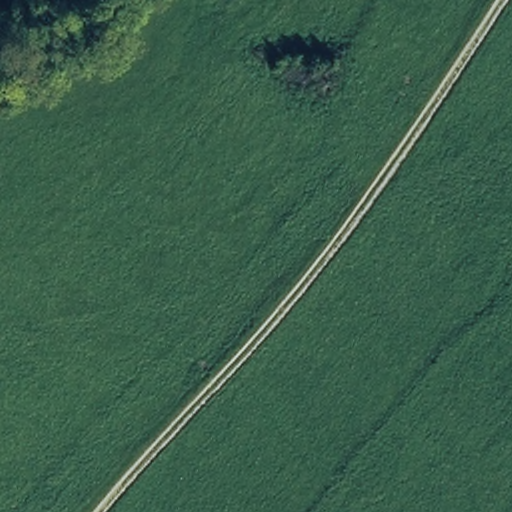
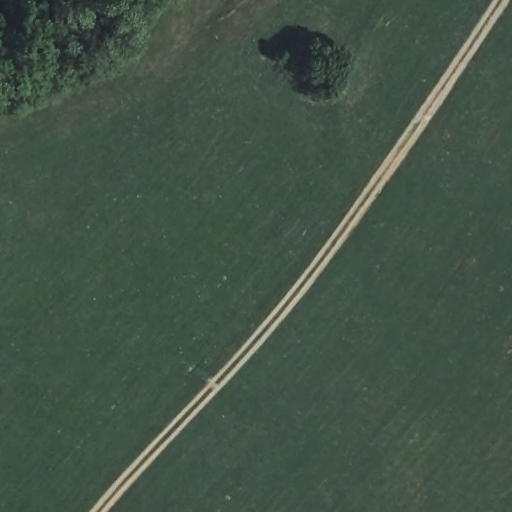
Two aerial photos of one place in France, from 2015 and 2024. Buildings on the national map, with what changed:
[]

